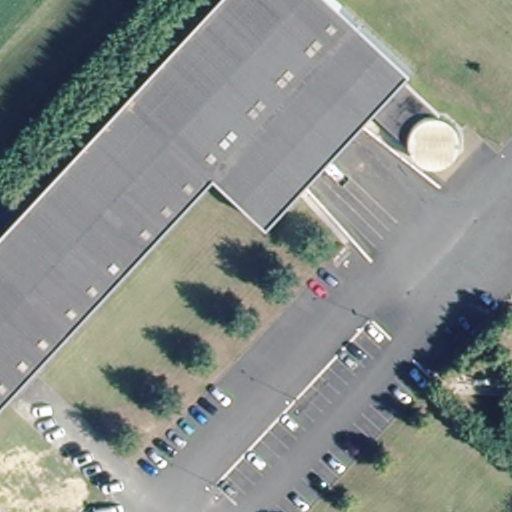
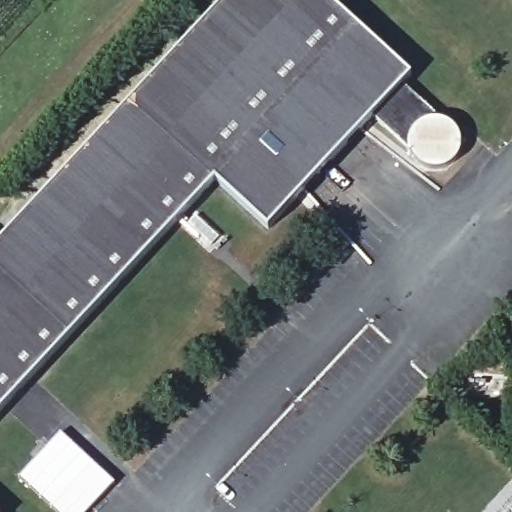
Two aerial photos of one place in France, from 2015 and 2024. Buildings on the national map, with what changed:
unchanged [(219,0),(337,0),(416,73),(276,228),(222,179),(135,270),(0,417),(0,235),(157,65),(219,0)]
new [(405,86),(441,120),(440,119),(433,119),(426,121),(420,125),(415,130),(411,136),(410,143),(410,150),(411,152),(375,119),(405,86)]
new [(60,432),(115,482),(88,512),(56,512),(18,475),(60,432)]

